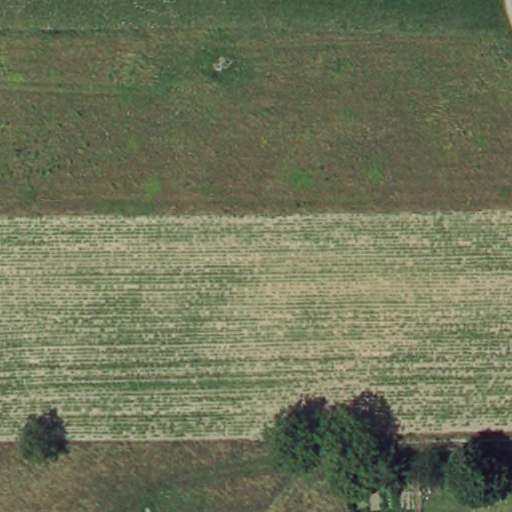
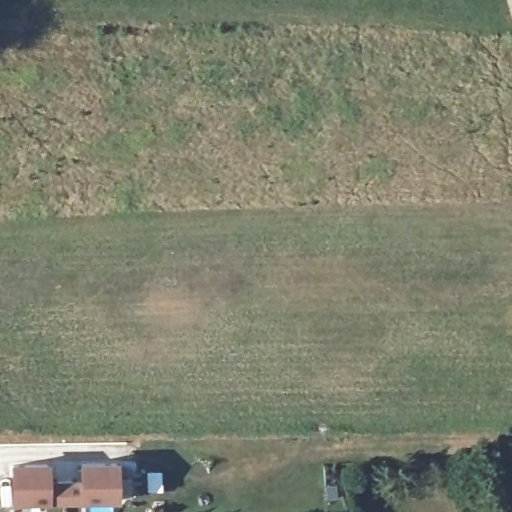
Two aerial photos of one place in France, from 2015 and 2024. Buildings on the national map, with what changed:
new [(9,502),(9,461),(117,460),(117,500),(9,502)]

